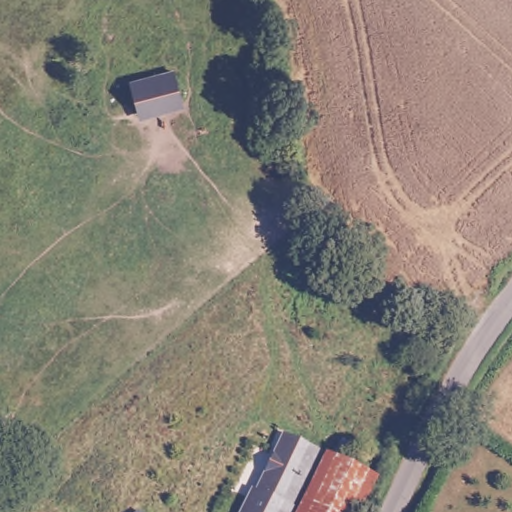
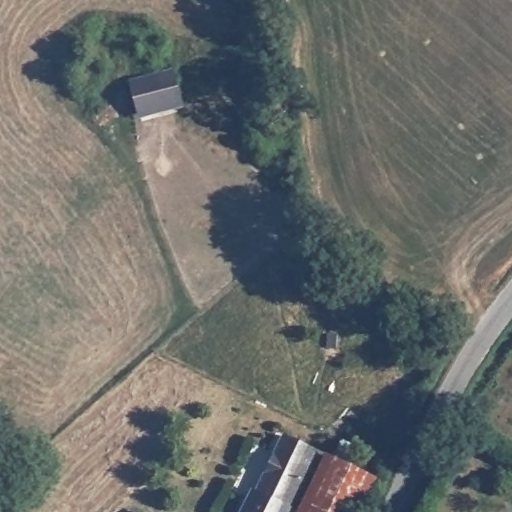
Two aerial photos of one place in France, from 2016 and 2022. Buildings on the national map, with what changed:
unchanged [(124,89),(167,77),(175,106),(131,118),(124,89)]
unchanged [(264,483),(289,430),(329,450),(302,507),(299,512),(249,512),(261,488),(264,483)]
unchanged [(381,475),(363,512),(302,512),(331,451),(381,475)]

